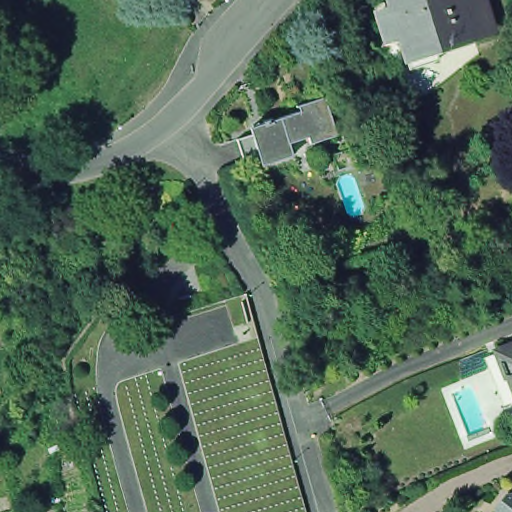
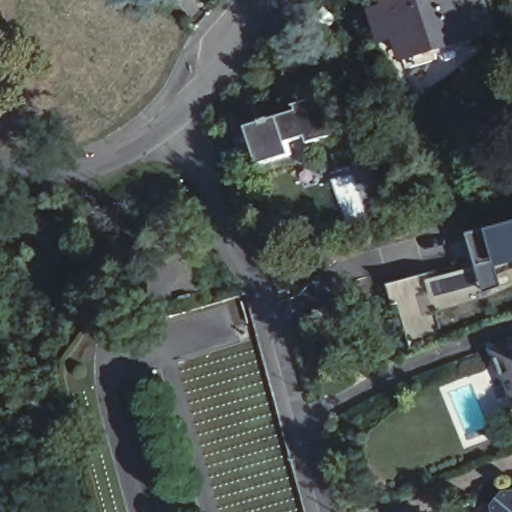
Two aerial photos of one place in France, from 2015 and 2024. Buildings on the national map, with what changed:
unchanged [(436,49),(440,59),(410,69),(400,35),(387,39),(378,12),(392,7),(389,0),(484,0),(494,31),(436,49)]
unchanged [(262,135),(259,126),(268,122),(269,124),(296,115),(295,111),(292,111),(292,110),(320,101),(333,140),(306,148),(304,142),(285,147),(289,160),(262,169),(260,164),(242,170),(233,144),(262,135)]
new [(512,221),(512,289),(489,298),(432,311),(440,341),(406,350),(391,288),(459,270),(450,237),(512,221)]
unchanged [(512,345),(512,360),(507,347),(512,345)]
unchanged [(507,375),(512,373),(512,387),(507,375)]
unchanged [(507,495),(512,494),(512,512),(499,512),(498,507),(507,495)]

